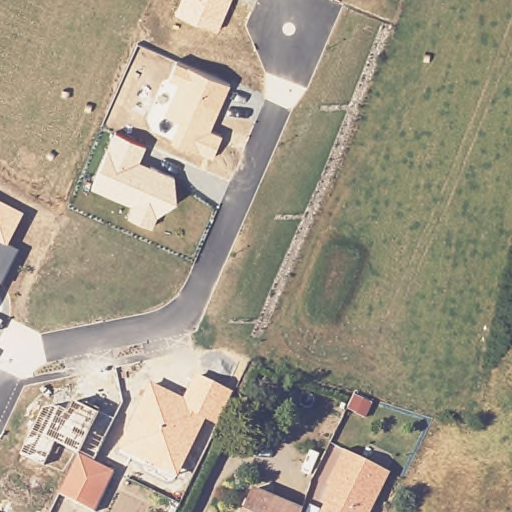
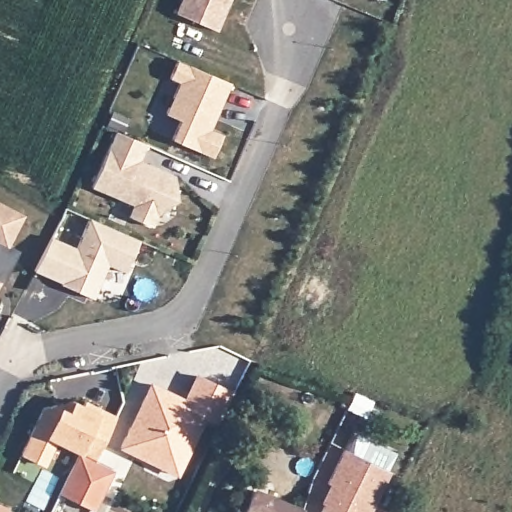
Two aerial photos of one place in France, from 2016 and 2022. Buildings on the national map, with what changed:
unchanged [(175,14),(181,0),(231,0),(218,31),(175,14)]
unchanged [(213,159),(171,140),(179,122),(164,116),(178,84),(169,79),(176,61),(232,84),(211,130),(223,136),(213,159)]
unchanged [(177,202),(158,217),(154,229),(127,217),(132,206),(92,187),(116,131),(147,145),(141,161),(176,175),(177,202)]
unchanged [(9,246),(19,251),(1,285),(0,285),(0,203),(25,216),(9,246)]
new [(51,238),(76,249),(90,219),(140,241),(126,273),(107,265),(92,299),(60,285),(61,283),(34,271),(51,238)]
unchanged [(150,383),(184,400),(196,373),(234,392),(219,427),(207,422),(178,478),(118,450),(150,383)]
unchanged [(20,456),(42,408),(53,406),(74,402),(100,415),(114,421),(95,462),(79,455),(57,445),(46,467),(20,456)]
unchanged [(319,507),(328,487),(326,485),(343,449),(391,473),(371,512),(321,512),(322,509),(319,507)]
unchanged [(59,494),(79,453),(115,472),(95,512),(59,494)]
unchanged [(302,512),(243,512),(252,490),(302,512)]

